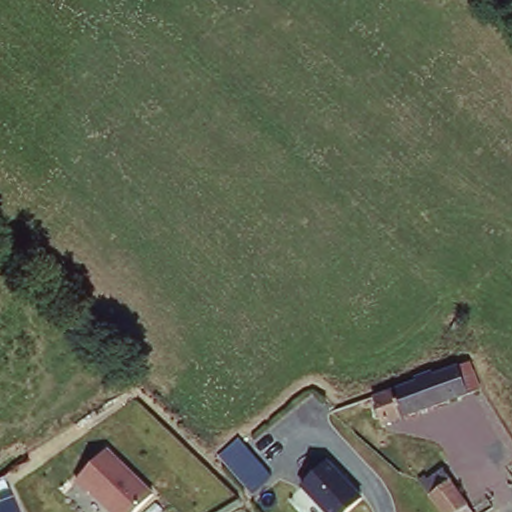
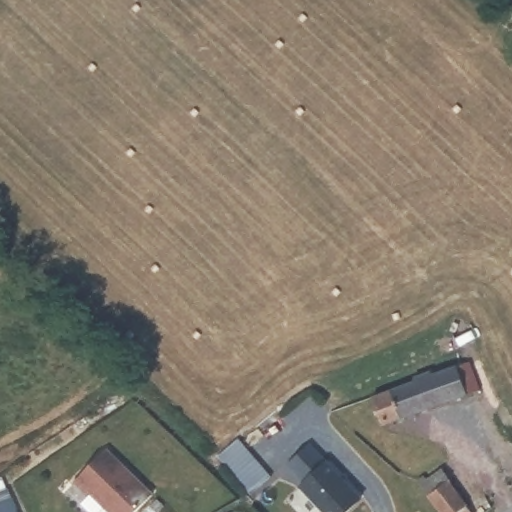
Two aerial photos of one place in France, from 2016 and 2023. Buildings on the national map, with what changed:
unchanged [(461,399),(381,427),(370,394),(469,358),(477,393),(461,399)]
unchanged [(238,438),(268,472),(250,488),(219,455),(238,438)]
unchanged [(116,512),(81,477),(111,446),(157,491),(139,512),(116,512)]
unchanged [(362,497),(346,512),(323,512),(300,486),(327,461),(362,497)]
unchanged [(441,470),(468,512),(441,512),(420,483),(441,470)]
unchanged [(8,486),(17,512),(0,512),(0,489),(8,486)]

